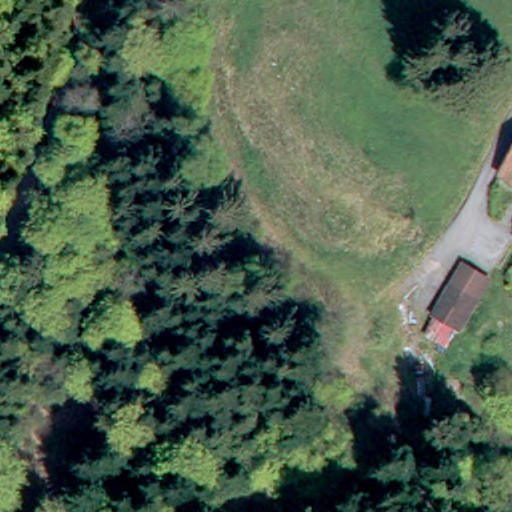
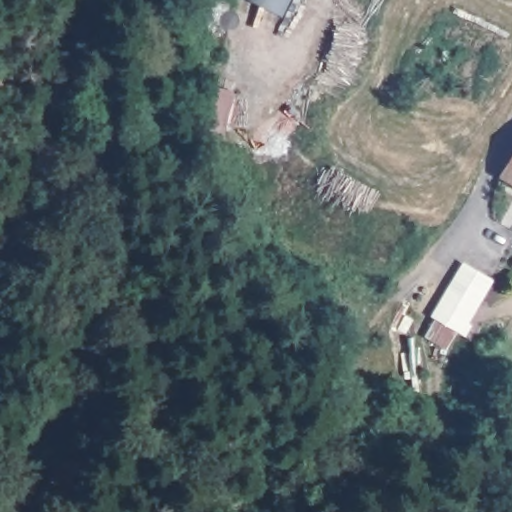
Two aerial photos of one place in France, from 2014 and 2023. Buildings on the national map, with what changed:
new [(249,0),(290,0),(281,17),(249,0)]
unchanged [(512,159),(512,186),(500,179),(512,159)]
unchanged [(434,317),(430,314),(463,261),(492,280),(460,332),(456,330),(445,349),(424,337),(434,317)]

